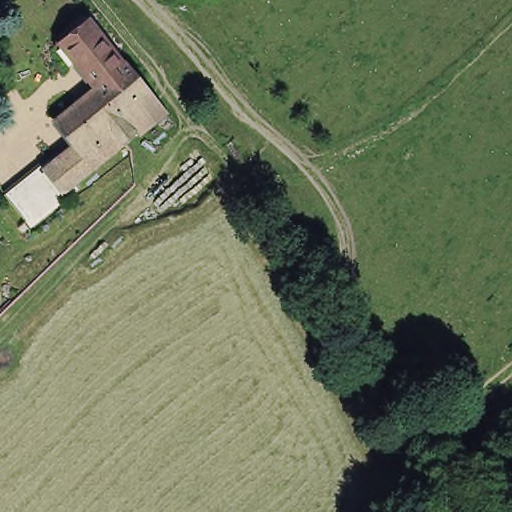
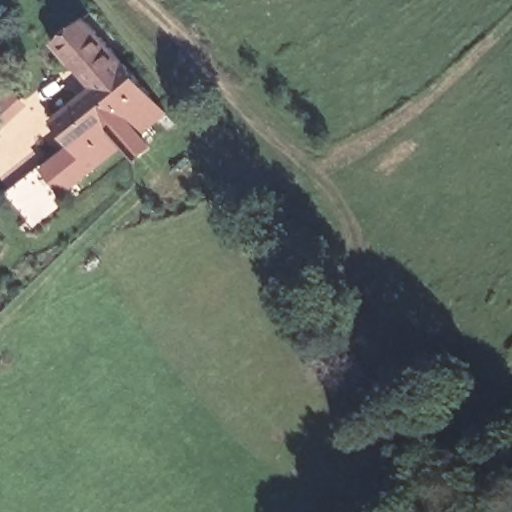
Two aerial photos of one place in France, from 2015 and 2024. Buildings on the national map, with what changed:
unchanged [(93,83),(86,74),(72,56),(59,40),(65,36),(86,18),(98,31),(125,59),(147,88),(107,119),(83,92),(93,83)]
unchanged [(3,188),(54,147),(59,152),(71,143),(51,117),(60,110),(83,92),(107,119),(147,88),(163,109),(166,111),(137,133),(133,130),(69,180),(59,187),(65,194),(29,221),(3,188)]

